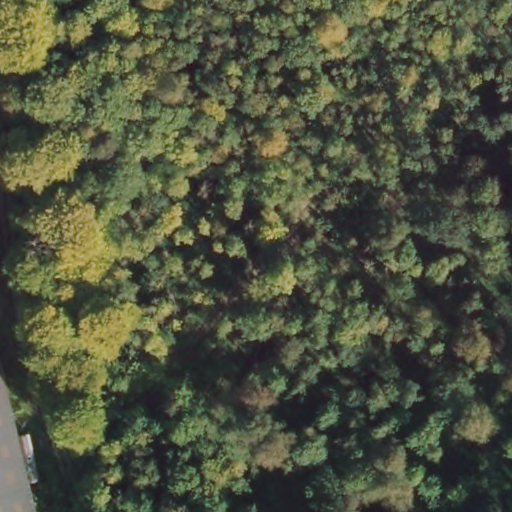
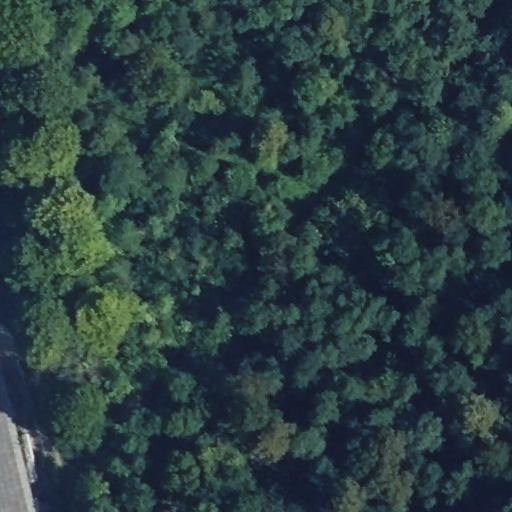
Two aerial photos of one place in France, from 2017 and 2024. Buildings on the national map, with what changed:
unchanged [(0,381),(24,512),(0,512),(0,381)]

